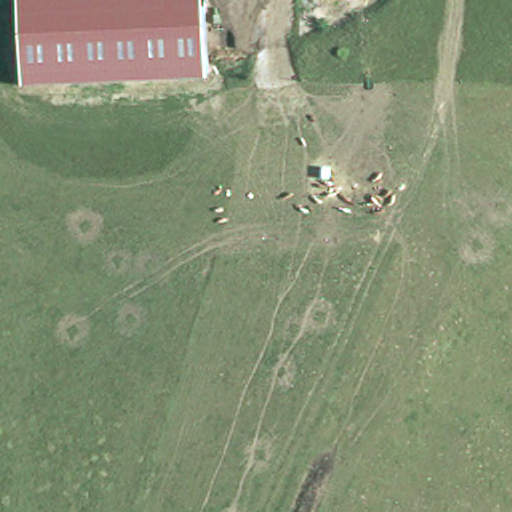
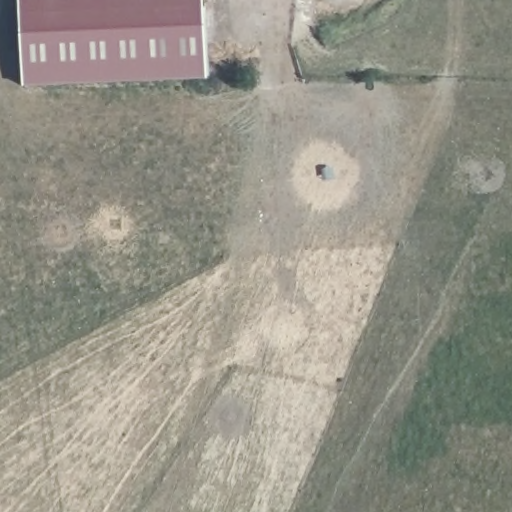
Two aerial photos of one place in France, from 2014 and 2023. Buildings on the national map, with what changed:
unchanged [(23,87),(18,0),(203,0),(207,78),(23,87)]

